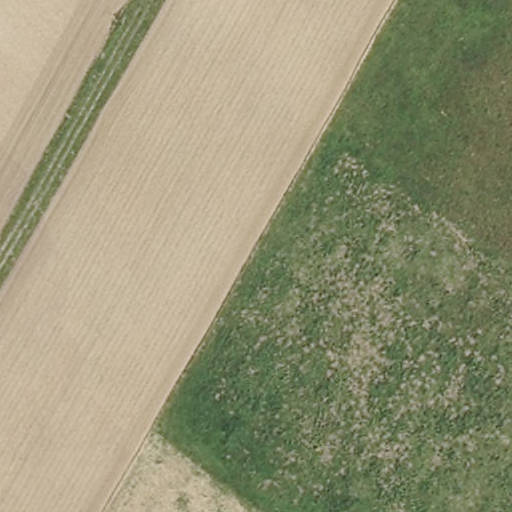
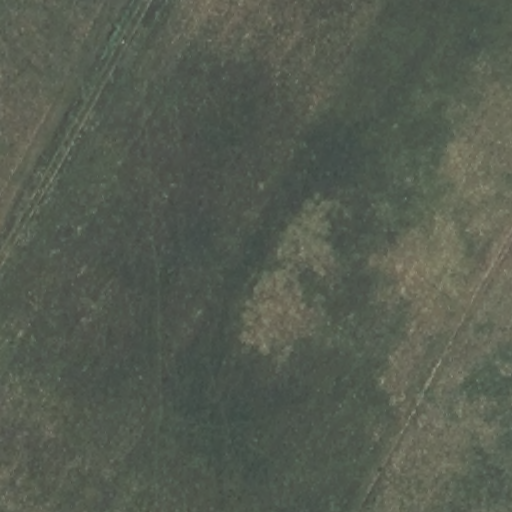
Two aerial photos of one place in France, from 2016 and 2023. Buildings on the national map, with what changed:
[]

